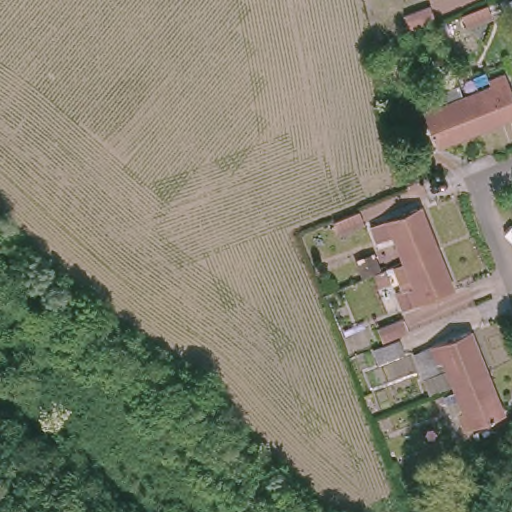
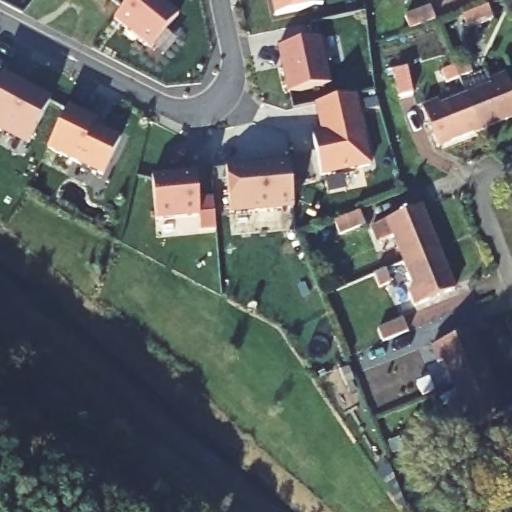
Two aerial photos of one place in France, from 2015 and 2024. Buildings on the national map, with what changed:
new [(161,0),(180,15),(152,49),(116,20),(132,0),(161,0)]
new [(278,14),(275,0),(324,0),(325,4),(278,14)]
unchanged [(487,5),(493,18),(467,28),(462,15),(487,5)]
unchanged [(431,6),(436,19),(411,29),(406,16),(431,6)]
new [(280,46),(323,37),(333,84),(290,92),(280,46)]
unchanged [(468,63),(472,75),(460,80),(455,68),(468,63)]
new [(3,72),(21,81),(19,85),(29,90),(30,89),(52,100),(32,141),(0,125),(0,79),(3,72)]
unchanged [(491,89),(488,81),(506,74),(512,90),(512,116),(479,129),(467,98),(491,89)]
new [(358,95),(373,165),(324,175),(315,135),(325,134),(322,118),(324,117),(321,102),(358,95)]
unchanged [(479,129),(438,145),(423,108),(440,101),(443,108),(467,98),(479,129)]
new [(98,120),(96,125),(123,139),(105,175),(50,148),(70,106),(98,120)]
new [(296,208),(232,213),(228,167),(250,165),(250,168),(260,167),(260,165),(292,161),(296,208)]
new [(202,216),(158,220),(154,175),(198,172),(202,216)]
unchanged [(406,260),(396,236),(390,239),(383,221),(421,206),(437,247),(406,260)]
unchanged [(339,216),(358,208),(364,221),(339,231),(333,219),(339,216)]
unchanged [(437,247),(454,289),(416,305),(409,288),(416,286),(406,260),(437,247)]
unchanged [(387,268),(392,281),(380,286),(375,273),(387,268)]
unchanged [(378,328),(403,318),(408,331),(383,341),(378,328)]
unchanged [(488,372),(457,385),(432,394),(416,353),(433,346),(471,331),(488,372)]
unchanged [(400,340),(406,353),(380,364),(374,350),(400,340)]
unchanged [(488,372),(504,414),(466,429),(460,413),(467,410),(457,385),(488,372)]

